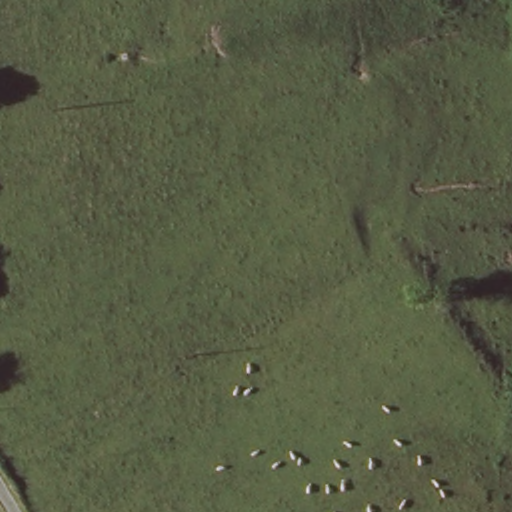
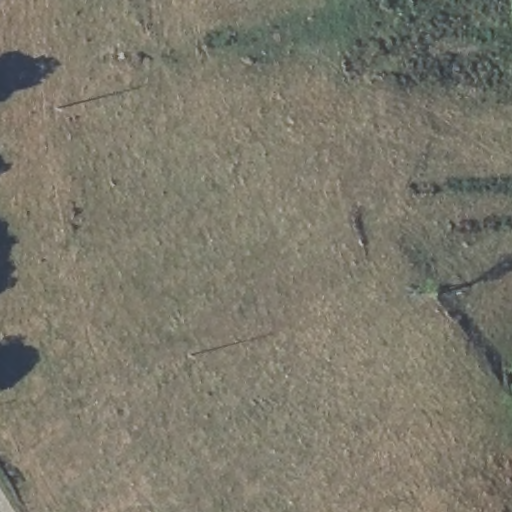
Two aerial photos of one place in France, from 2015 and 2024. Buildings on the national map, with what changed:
[]

